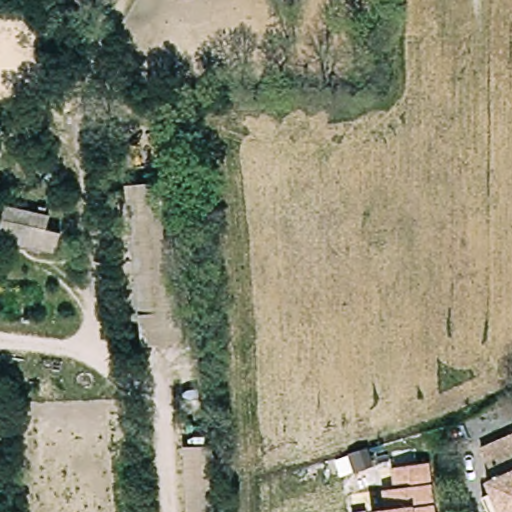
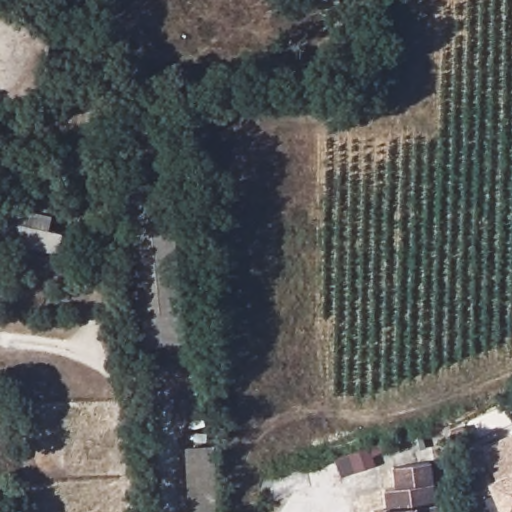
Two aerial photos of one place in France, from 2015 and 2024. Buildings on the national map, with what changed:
unchanged [(133,346),(115,183),(173,177),(193,339),(133,346)]
unchanged [(63,233),(58,254),(0,240),(0,224),(5,203),(52,214),(49,230),(63,233)]
unchanged [(493,474),(480,446),(512,433),(512,512),(505,512),(488,476),(493,474)]
unchanged [(184,444),(213,445),(216,512),(187,512),(184,444)]
unchanged [(378,493),(387,492),(384,469),(422,465),(428,512),(380,512),(378,493)]

